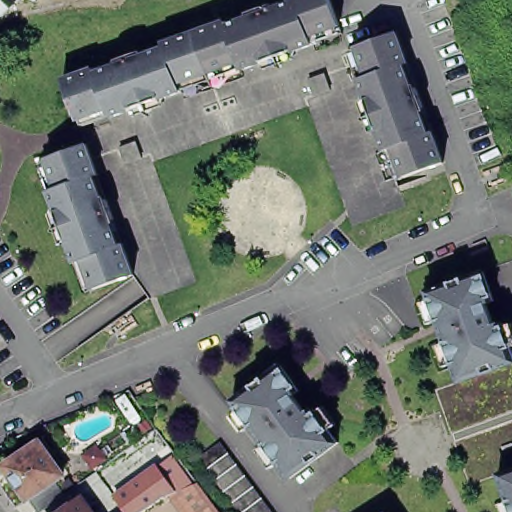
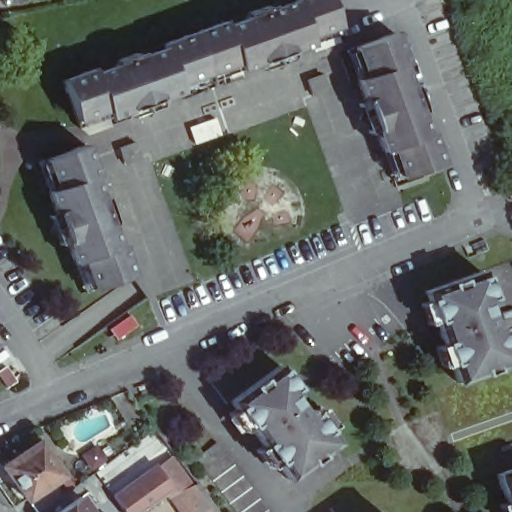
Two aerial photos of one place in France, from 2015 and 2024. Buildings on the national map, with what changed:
unchanged [(287,53),(278,47),(267,51),(263,61),(239,70),(237,62),(207,73),(192,32),(224,21),(225,25),(246,18),(249,12),(267,5),(272,8),(294,1),(293,0),(328,0),(338,26),(340,33),(311,44),(287,53)]
unchanged [(76,120),(62,80),(92,69),(94,73),(115,65),(117,59),(136,53),(142,56),(162,48),(161,44),(192,32),(207,73),(177,84),(180,91),(155,100),(147,95),(135,99),(132,108),(108,117),(79,127),(76,120)]
unchanged [(394,180),(382,151),(374,127),(379,118),(375,107),(365,103),(357,79),(347,50),(354,47),(394,32),(405,63),(401,65),(409,86),(415,88),(421,107),(418,112),(426,134),(430,132),(442,163),(401,178),(395,180),(394,180)]
unchanged [(310,79),(327,74),(332,93),(314,99),(310,79)]
unchanged [(74,263),(65,238),(70,230),(66,218),(57,215),(47,191),(37,161),(45,159),(85,144),(97,175),(92,177),(100,198),(105,200),(112,219),(109,224),(117,245),(121,244),(132,275),(92,290),(85,292),(74,263)]
unchanged [(138,144),(144,161),(127,168),(122,150),(138,144)]
unchanged [(471,266),(482,296),(474,299),(480,319),(489,316),(504,357),(447,377),(415,286),(471,266)]
unchanged [(274,365),(292,390),(285,395),(299,412),(305,407),(320,428),(331,442),(282,478),(264,452),(225,400),(274,365)]
unchanged [(2,466),(38,442),(42,439),(50,449),(45,452),(62,475),(53,480),(63,495),(58,498),(39,512),(36,512),(26,498),(2,466)]
unchanged [(210,477),(195,458),(217,442),(235,466),(270,512),(236,512),(210,477)]
unchanged [(95,451),(104,463),(92,472),(82,460),(95,451)]
unchanged [(512,465),(512,512),(501,512),(486,474),(512,465)]
unchanged [(124,506),(120,501),(140,486),(167,467),(182,487),(190,484),(192,491),(202,487),(209,498),(217,508),(219,512),(180,512),(172,499),(166,502),(153,512),(115,512),(124,506)]
unchanged [(90,498),(99,510),(97,512),(70,512),(90,498)]

